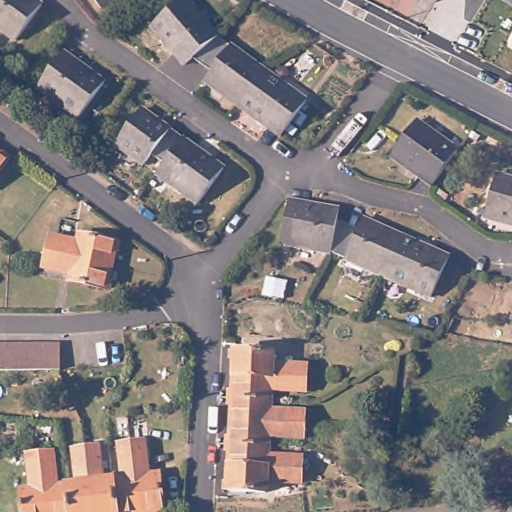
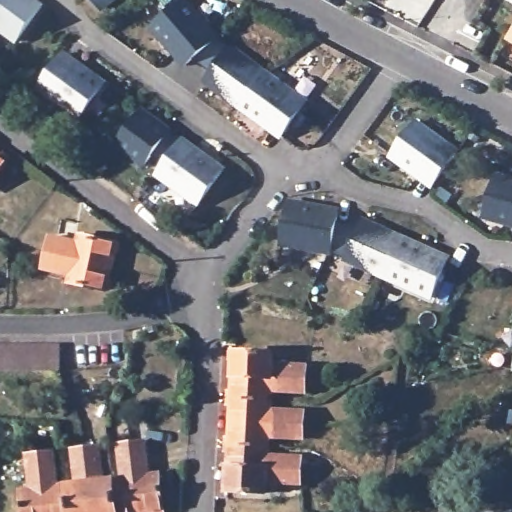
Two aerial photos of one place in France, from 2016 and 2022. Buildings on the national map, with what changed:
unchanged [(42,5),(18,41),(0,28),(0,0),(35,0),(42,5)]
unchanged [(100,10),(92,0),(113,0),(100,10)]
unchanged [(153,26),(180,0),(188,0),(217,32),(194,56),(187,62),(153,26)]
unchanged [(431,4),(425,0),(433,0),(431,4)]
unchanged [(512,2),(509,0),(512,0),(512,2)]
unchanged [(512,31),(512,44),(505,40),(512,31)]
unchanged [(217,32),(267,70),(242,105),(206,78),(213,69),(194,56),(217,32)]
unchanged [(64,50),(105,80),(81,116),(39,85),(64,50)]
unchanged [(310,98),(286,133),(270,124),(242,105),(267,70),(298,91),(310,98)]
unchanged [(122,137),(147,102),(186,132),(161,166),(122,137)]
unchanged [(391,154),(416,120),(457,149),(430,186),(391,154)]
unchanged [(186,132),(230,163),(205,198),(161,166),(186,132)]
unchanged [(11,163),(0,178),(0,155),(11,163)]
unchanged [(500,175),(512,178),(512,222),(490,215),(500,175)]
unchanged [(287,243),(295,201),(342,210),(341,220),(335,253),(287,243)]
unchanged [(341,220),(362,230),(367,220),(407,238),(390,278),(335,253),(341,220)]
unchanged [(51,240),(78,243),(79,236),(117,240),(114,264),(49,253),(51,240)]
unchanged [(407,238),(453,259),(435,298),(390,278),(407,238)]
unchanged [(114,264),(110,287),(72,281),(74,275),(46,271),(49,253),(114,264)]
unchanged [(7,342),(21,342),(33,342),(45,342),(57,342),(57,368),(45,368),(32,368),(20,368),(7,369),(0,369),(0,342),(7,342)]
unchanged [(235,356),(273,358),(273,364),(302,365),(302,379),(234,376),(235,356)]
unchanged [(234,376),(302,379),(301,395),(271,394),(271,402),(232,400),(234,376)]
unchanged [(232,400),(271,402),(271,411),(301,412),(300,425),(231,423),(232,400)]
unchanged [(231,423),(300,425),(300,441),(270,440),(270,447),(230,446),(231,423)]
unchanged [(149,473),(157,473),(161,510),(151,512),(140,512),(131,441),(145,439),(149,473)]
unchanged [(120,443),(131,441),(140,512),(116,512),(112,478),(124,477),(120,443)]
unchanged [(101,480),(112,478),(116,512),(93,512),(85,448),(96,446),(101,480)]
unchanged [(230,446),(270,447),(269,457),(300,458),(298,473),(230,471),(230,446)]
unchanged [(72,449),(85,448),(93,512),(69,512),(66,485),(76,484),(72,449)]
unchanged [(55,486),(66,485),(69,512),(45,512),(38,454),(51,452),(55,486)]
unchanged [(45,512),(21,512),(19,492),(31,490),(27,455),(38,454),(45,512)]
unchanged [(298,473),(299,488),(267,488),(266,496),(229,495),(230,471),(298,473)]

